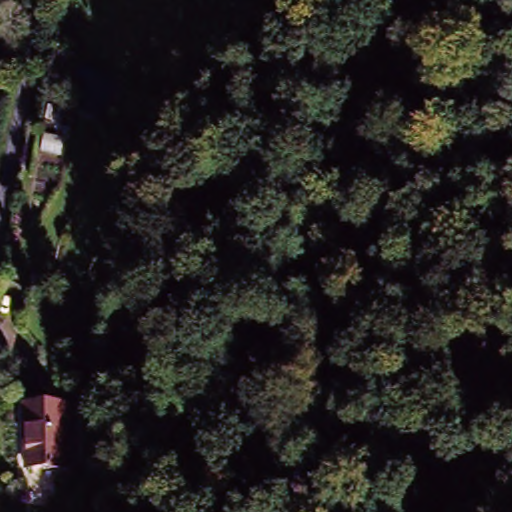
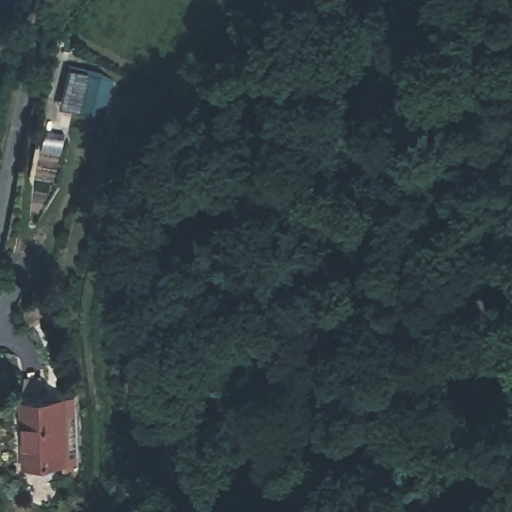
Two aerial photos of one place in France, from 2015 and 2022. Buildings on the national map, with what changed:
unchanged [(66,472),(30,470),(30,406),(67,408),(66,472)]

